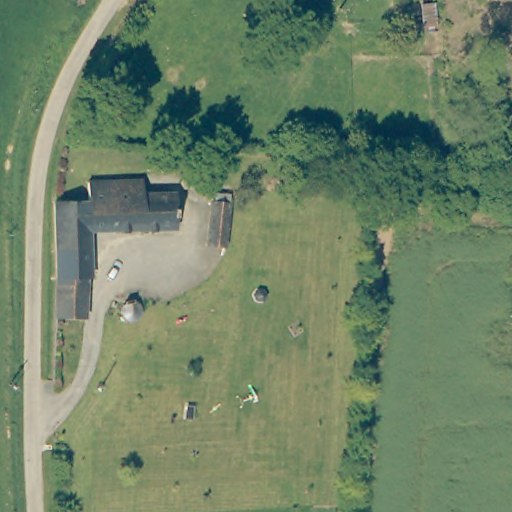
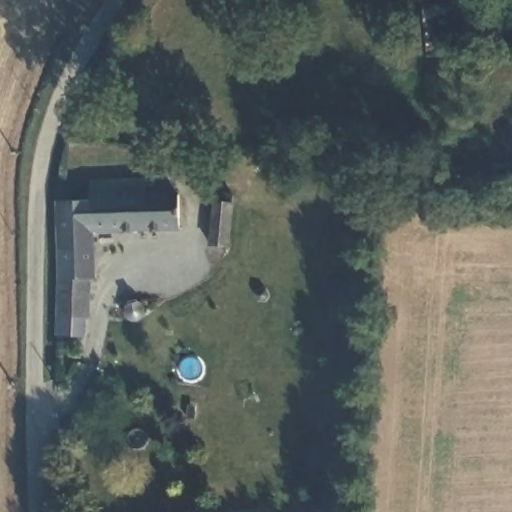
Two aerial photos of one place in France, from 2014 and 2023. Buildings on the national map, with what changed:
unchanged [(91,200),(91,178),(145,177),(145,192),(179,192),(180,230),(93,231),(94,277),(89,277),(60,277),(59,201),(91,200)]
unchanged [(227,246),(210,244),(217,191),(234,192),(227,246)]
unchanged [(89,318),(60,318),(60,279),(60,277),(89,277),(89,318)]
unchanged [(136,325),(128,318),(125,310),(130,302),(139,303),(145,307),(148,315),(136,325)]

